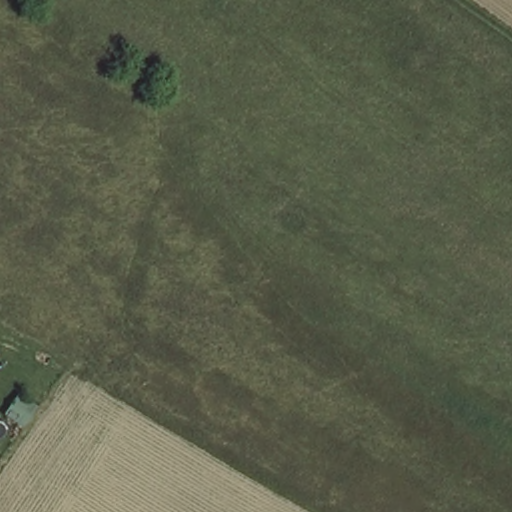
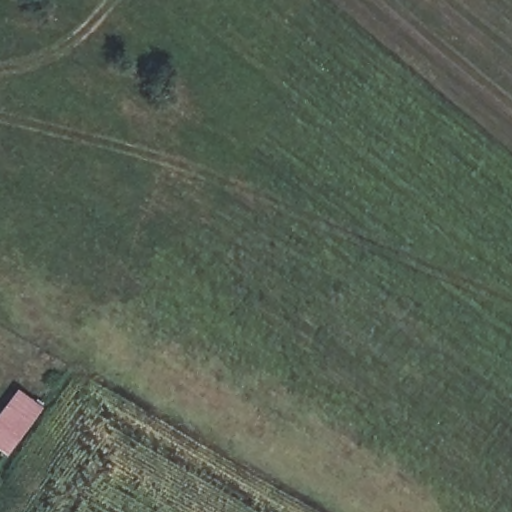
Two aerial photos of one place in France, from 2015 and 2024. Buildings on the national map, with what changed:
new [(18,439),(0,426),(0,409),(15,388),(41,407),(18,439)]

